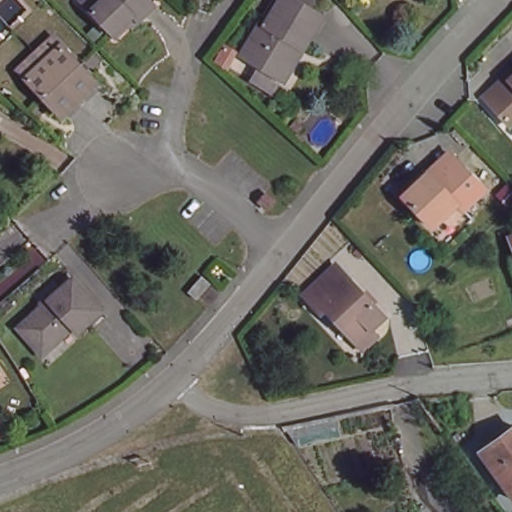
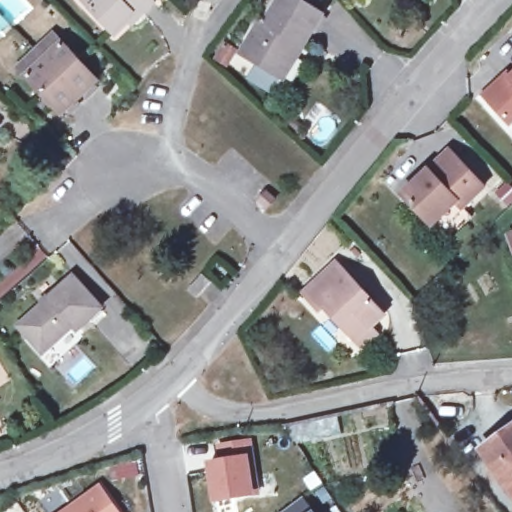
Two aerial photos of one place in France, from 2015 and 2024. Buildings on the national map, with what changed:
unchanged [(150,4),(136,18),(131,12),(110,32),(83,4),(86,0),(146,0),(150,4)]
unchanged [(271,74),(235,53),(256,19),(263,22),(276,0),(298,0),(325,16),(304,51),(285,82),(271,74)]
unchanged [(63,109),(23,76),(14,69),(45,34),(53,41),(93,75),(63,109)]
unchanged [(509,122),(483,94),(503,77),(508,82),(512,78),(512,118),(509,122)]
unchanged [(462,205),(457,200),(433,222),(405,192),(432,167),(449,151),(456,157),(483,186),(462,205)]
unchanged [(508,256),(502,233),(512,229),(512,254),(508,256)]
unchanged [(361,350),(354,341),(323,310),(318,315),(303,298),(334,266),(380,315),(366,330),(374,338),(361,350)]
unchanged [(99,306),(74,329),(66,321),(38,347),(15,322),(68,272),(99,306)]
unchanged [(225,290),(208,309),(190,292),(205,274),(225,290)]
unchanged [(479,452),(512,430),(512,498),(479,452)]
new [(261,494),(253,497),(213,503),(206,462),(219,459),(216,445),(251,438),(261,494)]
new [(64,512),(100,487),(117,512),(64,512)]
new [(310,512),(283,512),(301,499),(310,512)]

